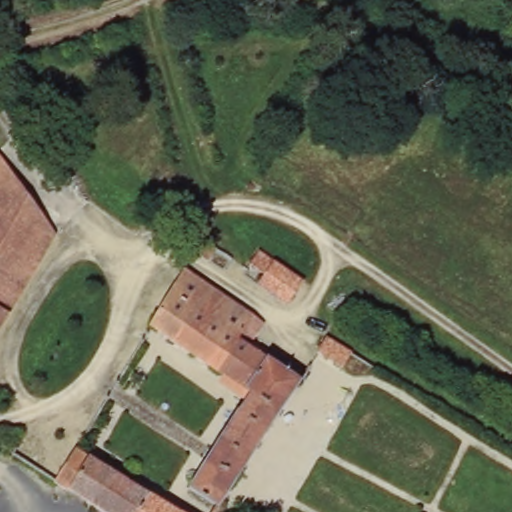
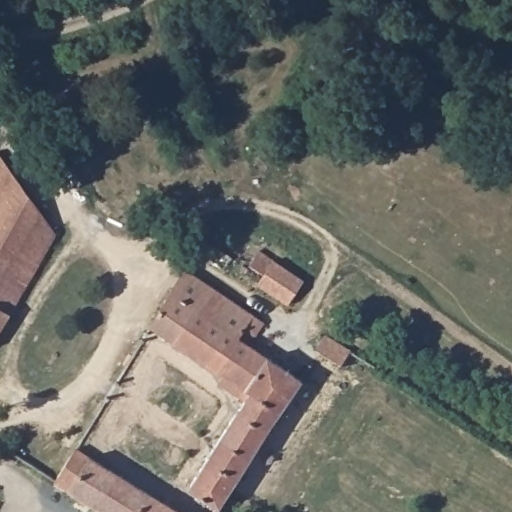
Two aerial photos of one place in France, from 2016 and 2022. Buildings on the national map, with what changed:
unchanged [(0,335),(0,157),(59,237),(0,335)]
unchanged [(217,249),(210,260),(197,251),(204,240),(217,249)]
unchanged [(306,284),(288,307),(256,285),(264,275),(248,265),(258,251),(306,284)]
unchanged [(185,269),(267,322),(252,347),(270,357),(302,378),(222,509),(190,487),(248,392),(150,330),(185,269)]
unchanged [(327,337),(352,352),(341,367),(317,352),(327,337)]
unchanged [(72,449),(136,487),(175,512),(97,512),(52,485),(72,449)]

